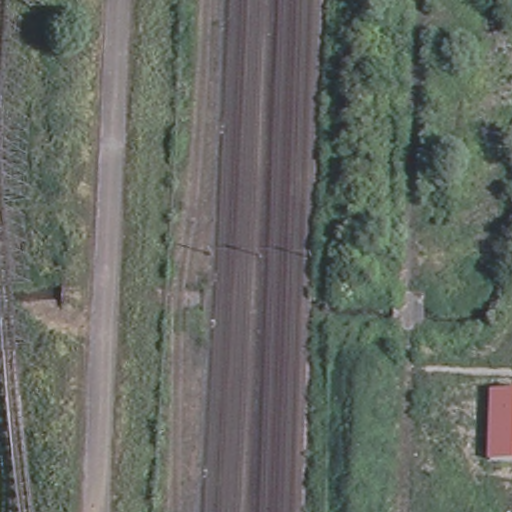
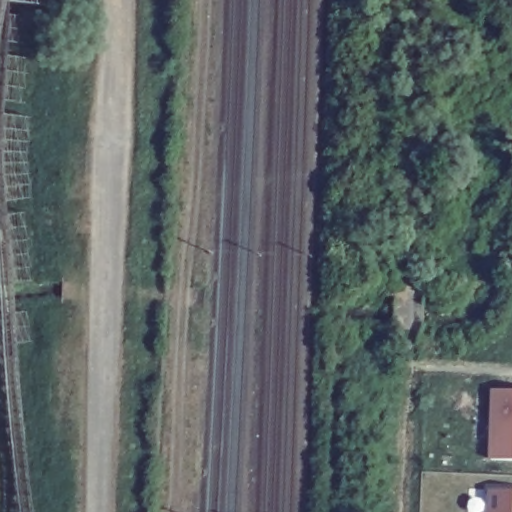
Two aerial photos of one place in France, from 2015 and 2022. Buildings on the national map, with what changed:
unchanged [(512,389),(512,461),(488,461),(491,388),(512,389)]
new [(512,491),(512,512),(488,512),(489,490),(512,491)]

